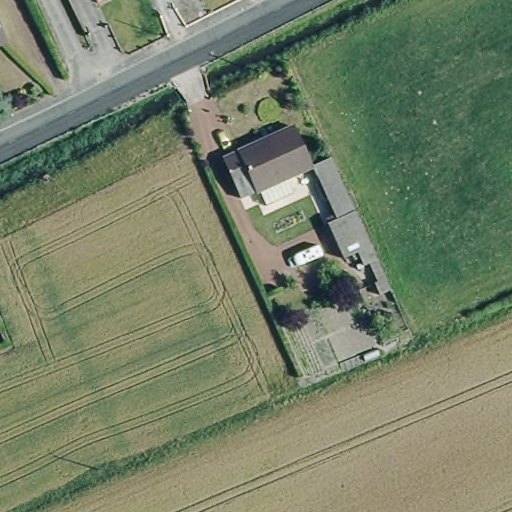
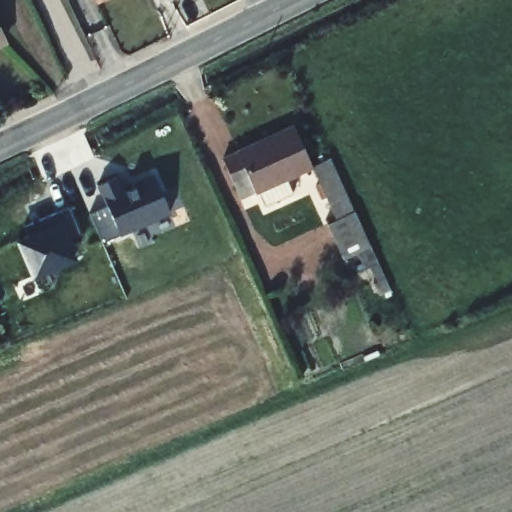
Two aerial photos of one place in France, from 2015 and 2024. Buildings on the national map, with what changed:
unchanged [(96,0),(117,0),(100,8),(96,0)]
unchanged [(8,41),(0,45),(0,24),(8,41)]
unchanged [(309,166),(286,176),(294,195),(266,206),(257,190),(238,198),(221,159),(293,126),(309,166)]
unchanged [(376,260),(361,267),(356,254),(343,260),(324,223),(336,218),(311,166),(329,158),(376,260)]
new [(107,205),(98,184),(121,173),(126,185),(153,174),(173,215),(118,237),(104,242),(90,214),(107,205)]
new [(70,217),(78,236),(68,240),(76,258),(32,277),(17,240),(70,217)]

